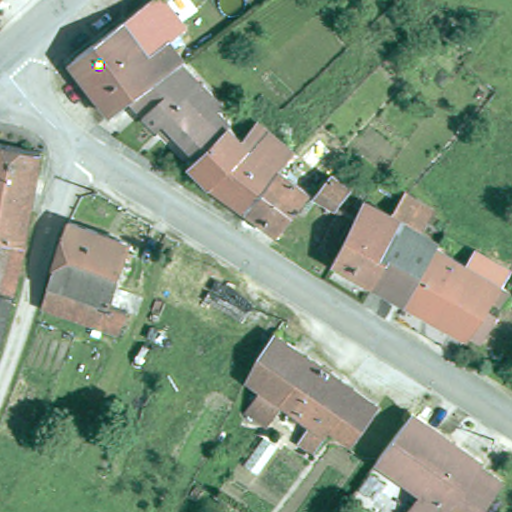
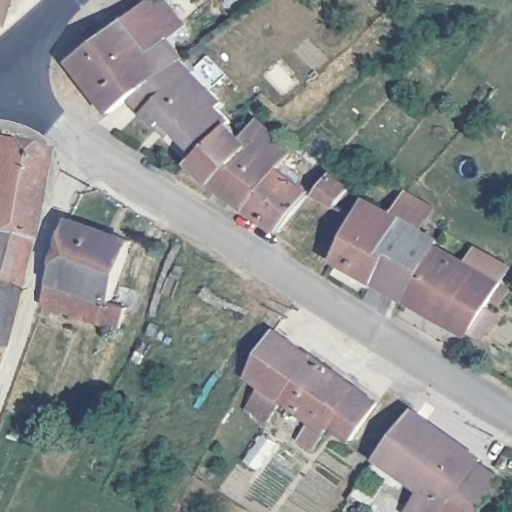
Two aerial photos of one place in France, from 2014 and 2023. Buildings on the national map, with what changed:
unchanged [(121,107),(82,55),(140,14),(161,0),(179,0),(195,22),(179,36),(191,52),(192,53),(187,56),(172,68),(137,95),(135,96),(127,102),(121,107)]
unchanged [(162,125),(137,95),(172,68),(187,56),(205,78),(227,104),(222,110),(235,125),(234,126),(204,157),(180,130),(172,137),(162,125)]
unchanged [(250,137),(264,123),(283,136),(302,150),(287,167),(252,204),(197,164),(204,157),(234,126),(250,137)]
unchanged [(46,148),(42,178),(28,239),(0,233),(0,140),(46,148)]
unchanged [(317,192),(333,174),(351,181),(345,193),(338,205),(317,194),(287,229),(252,204),(287,167),(317,192)]
unchanged [(407,186),(442,205),(428,230),(392,212),(407,186)]
unchanged [(412,295),(341,255),(371,200),(392,212),(428,230),(445,239),(442,245),(412,295)]
unchanged [(126,324),(107,319),(50,300),(75,216),(111,230),(135,239),(120,282),(115,297),(132,302),(126,324)]
unchanged [(0,288),(0,233),(28,239),(31,240),(17,292),(0,288)]
unchanged [(500,295),(495,303),(507,310),(490,339),(477,332),(412,295),(442,245),(458,253),(467,237),(509,261),(499,278),(508,283),(512,285),(512,294),(509,300),(500,295)]
unchanged [(17,292),(0,348),(0,288),(17,292)]
unchanged [(273,380),(260,371),(292,329),(335,361),(303,400),(295,395),(280,416),(260,404),(273,380)]
unchanged [(335,361),(390,402),(363,440),(342,427),(325,450),(313,440),(317,433),(292,415),(303,400),(335,361)]
unchanged [(238,378),(229,396),(207,383),(216,365),(238,378)]
unchanged [(490,455),(490,460),(512,476),(486,512),(420,512),(418,510),(437,486),(405,463),(388,452),(420,407),(490,455)]

